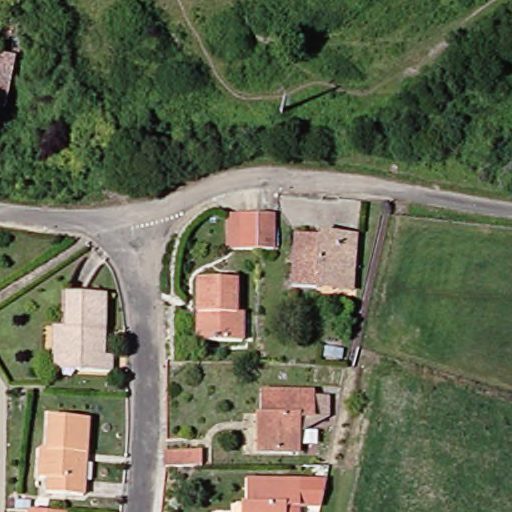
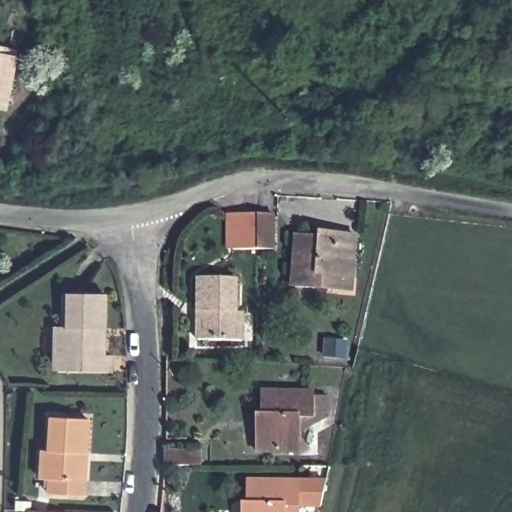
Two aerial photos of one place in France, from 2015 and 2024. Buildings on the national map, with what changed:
unchanged [(0,56),(13,59),(4,108),(0,108),(0,56)]
unchanged [(222,214),(252,214),(268,214),(268,250),(252,250),(222,250),(222,214)]
unchanged [(307,284),(282,282),(285,232),(309,233),(310,228),(324,230),(346,231),(342,273),(341,287),(307,284)]
unchanged [(187,308),(188,273),(226,274),(225,307),(232,307),(231,336),(193,335),(187,335),(187,308)]
unchanged [(49,355),(49,327),(56,327),(56,293),(94,294),(94,329),(93,355),(101,355),(101,371),(65,370),(49,370),(49,355)]
unchanged [(289,430),(289,448),(246,447),(246,425),(247,409),(252,410),(252,387),(303,388),(303,392),(318,393),(318,412),(318,413),(289,430)]
unchanged [(78,490),(42,489),(43,474),(34,474),(36,445),(43,446),(44,412),(83,415),(80,450),(79,477),(78,490)]
unchanged [(201,451),(201,466),(165,466),(165,450),(201,451)]
unchanged [(238,500),(243,500),(244,476),(321,477),(316,502),(293,502),(293,512),(238,512),(238,500)]
unchanged [(16,511),(24,512),(16,512),(16,511)]

